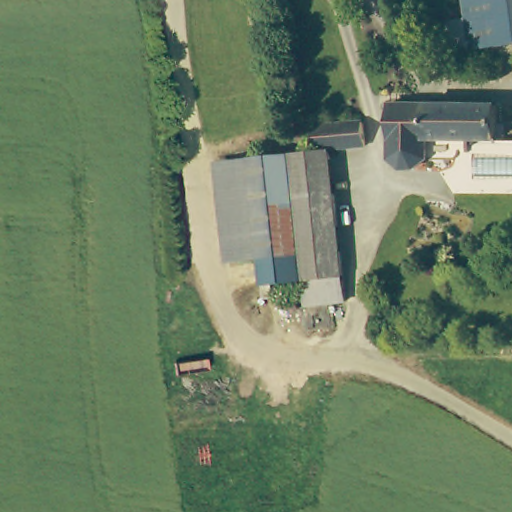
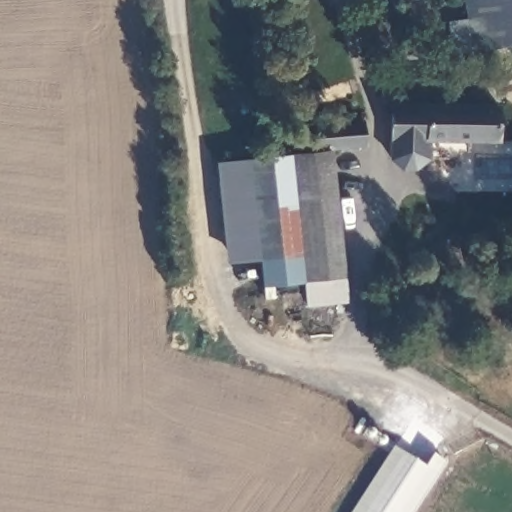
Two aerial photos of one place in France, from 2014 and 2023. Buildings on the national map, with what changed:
unchanged [(453,17),(478,13),(477,0),(512,0),(512,40),(498,42),(456,48),(453,17)]
unchanged [(493,145),(425,143),(425,162),(412,172),(400,172),(387,161),(389,105),(495,108),(493,145)]
unchanged [(318,119),(364,114),(368,139),(331,144),(313,146),(309,120),(318,119)]
unchanged [(298,148),(313,146),(331,144),(337,195),(331,196),(295,201),(288,149),(298,148)]
unchanged [(295,201),(300,250),(234,260),(220,158),(288,149),(295,201)]
unchanged [(307,302),(300,250),(295,201),(331,196),(337,195),(351,297),(348,298),(307,302)]
new [(300,250),(305,282),(262,287),(259,256),(300,250)]
new [(412,512),(350,512),(393,446),(425,465),(432,453),(435,454),(445,461),(412,512)]

